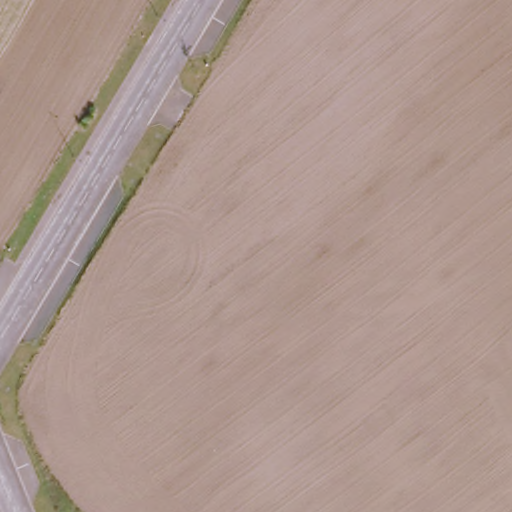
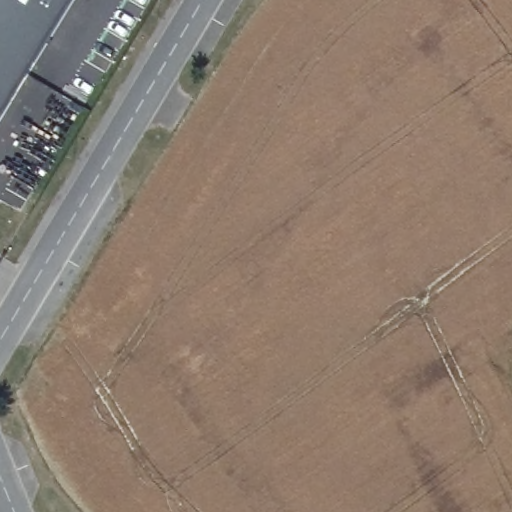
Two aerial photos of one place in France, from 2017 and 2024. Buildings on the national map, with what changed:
new [(48,40),(0,7),(0,0),(73,0),(48,40)]
new [(0,119),(0,7),(48,40),(0,119)]

